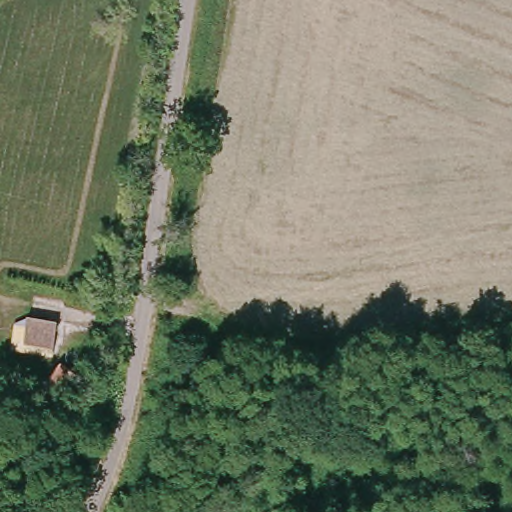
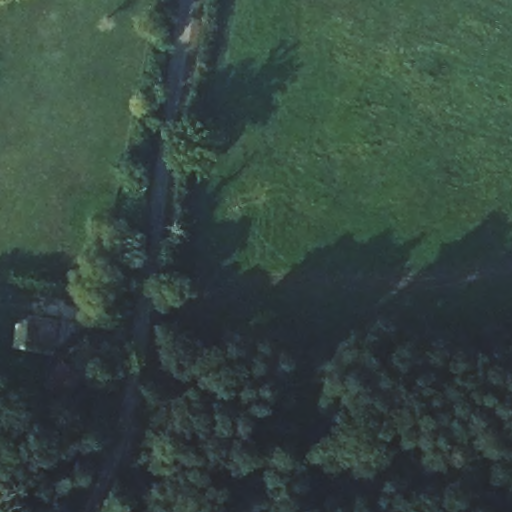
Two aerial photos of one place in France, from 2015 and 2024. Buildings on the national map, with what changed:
unchanged [(48,324),(40,345),(13,334),(21,315),(48,324)]

